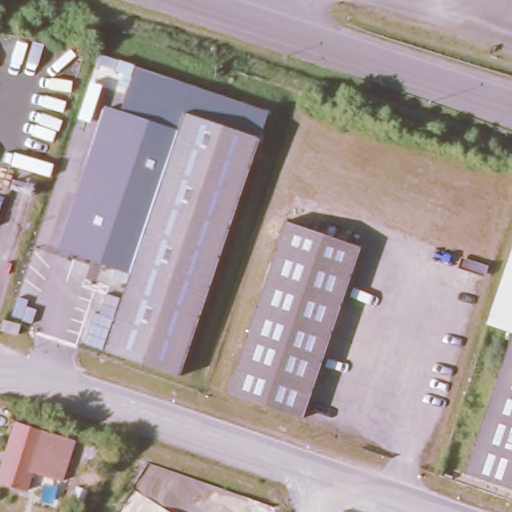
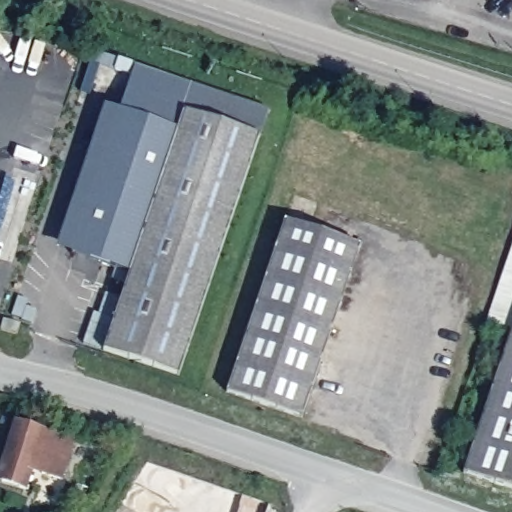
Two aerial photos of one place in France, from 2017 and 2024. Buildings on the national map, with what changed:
unchanged [(135,67),(269,111),(261,137),(185,111),(179,130),(119,110),(135,67)]
unchanged [(129,272),(58,247),(105,106),(119,110),(179,130),(129,272)]
unchanged [(261,137),(178,374),(103,348),(185,111),(261,137)]
unchanged [(360,246),(302,417),(225,391),(284,220),(360,246)]
unchanged [(485,323),(512,242),(512,325),(510,330),(485,323)]
unchanged [(20,323),(17,333),(1,329),(4,319),(20,323)]
unchanged [(510,330),(512,325),(512,484),(463,467),(510,330)]
unchanged [(40,430),(27,466),(21,489),(0,483),(0,452),(10,420),(40,430)]
unchanged [(74,440),(63,478),(27,466),(40,430),(74,440)]

